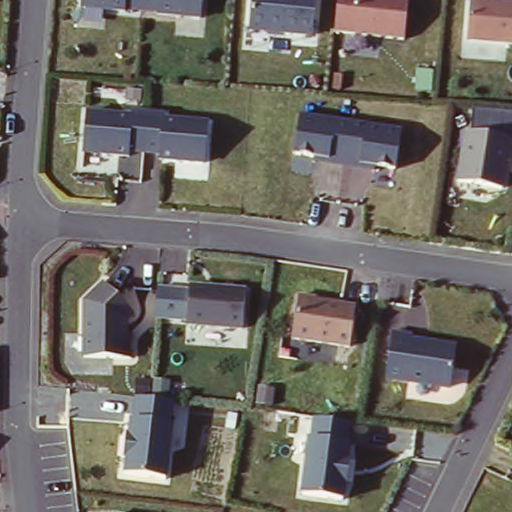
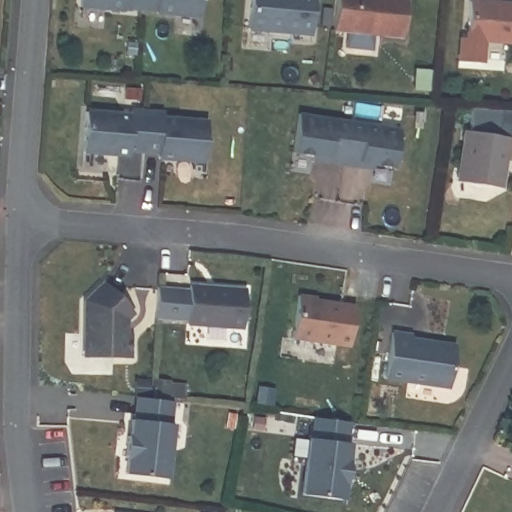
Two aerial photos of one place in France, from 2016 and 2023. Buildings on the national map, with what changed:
unchanged [(207,18),(88,7),(88,0),(209,0),(207,18)]
unchanged [(316,35),(255,30),(256,0),(318,0),(316,35)]
unchanged [(413,36),(341,30),(342,0),(414,0),(413,36)]
unchanged [(512,2),(512,42),(473,39),(474,0),(491,0),(512,2)]
unchanged [(209,162),(87,155),(91,110),(210,116),(209,162)]
unchanged [(397,172),(297,154),(303,111),(402,129),(397,172)]
unchanged [(512,139),(512,143),(506,189),(458,181),(466,128),(512,139)]
unchanged [(135,310),(127,321),(127,360),(85,357),(84,306),(106,283),(135,310)]
unchanged [(251,289),(248,330),(192,326),(195,284),(251,289)]
unchanged [(352,348),(297,337),(302,294),(358,305),(352,348)]
unchanged [(461,345),(457,383),(390,373),(396,332),(461,345)]
unchanged [(180,402),(174,482),(127,476),(136,395),(180,402)]
unchanged [(357,423),(348,506),(303,498),(315,416),(357,423)]
unchanged [(116,512),(117,511),(126,512),(116,512)]

